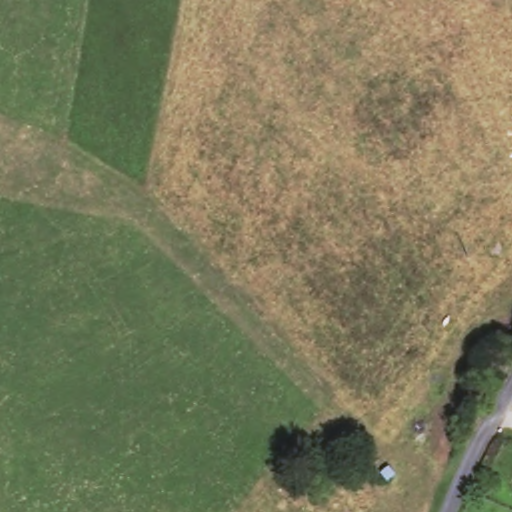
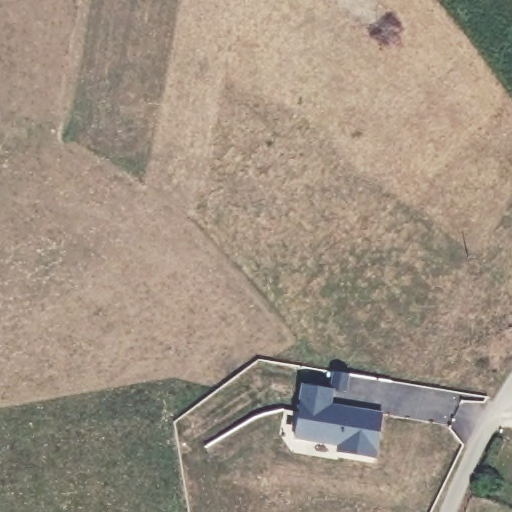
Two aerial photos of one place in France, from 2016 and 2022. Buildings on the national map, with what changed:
new [(334,388),(332,404),(382,412),(376,456),(338,452),(338,446),(295,438),(302,383),(334,388)]

